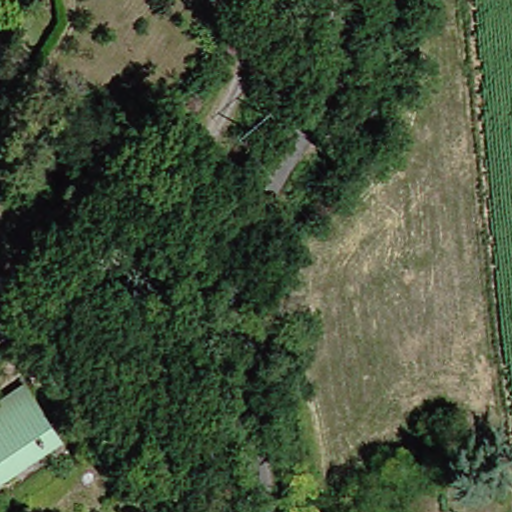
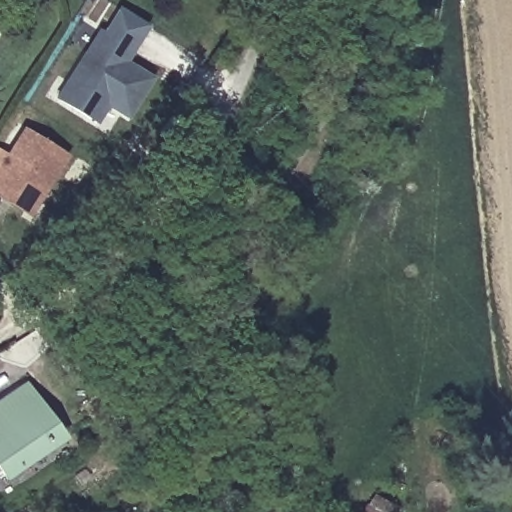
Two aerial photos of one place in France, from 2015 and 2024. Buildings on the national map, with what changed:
new [(96,30),(101,32),(117,8),(148,27),(127,63),(154,79),(128,123),(107,111),(98,127),(54,101),(96,30)]
new [(68,157),(27,220),(0,202),(0,150),(7,154),(23,128),(68,157)]
unchanged [(23,385),(48,418),(0,454),(0,404),(23,385)]
unchanged [(9,477),(0,463),(0,454),(48,418),(63,436),(9,477)]
unchanged [(0,484),(0,463),(9,477),(0,484)]

